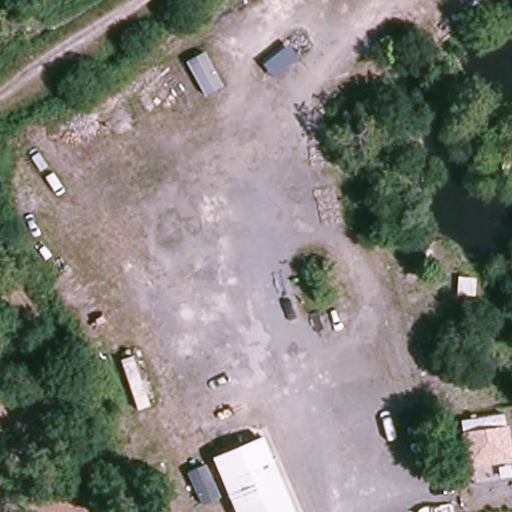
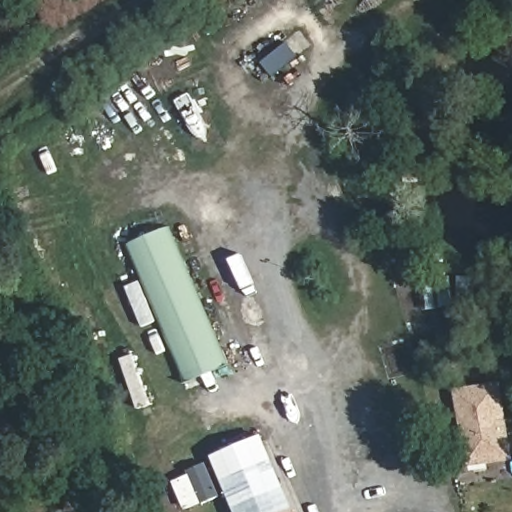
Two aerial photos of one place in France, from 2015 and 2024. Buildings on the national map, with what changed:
new [(184,384),(157,321),(142,327),(125,286),(141,279),(127,243),(169,226),(228,365),(184,384)]
new [(505,426),(503,415),(461,420),(456,389),(502,381),(509,425),(505,426)]
unchanged [(505,426),(509,425),(512,447),(512,462),(468,468),(461,420),(503,415),(505,426)]
unchanged [(212,457),(262,435),(293,512),(237,512),(212,457)]

